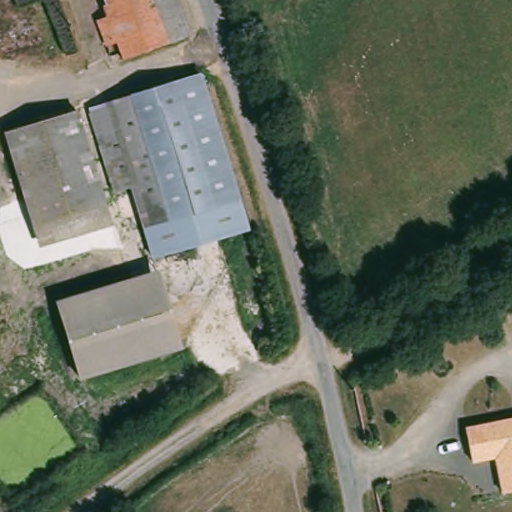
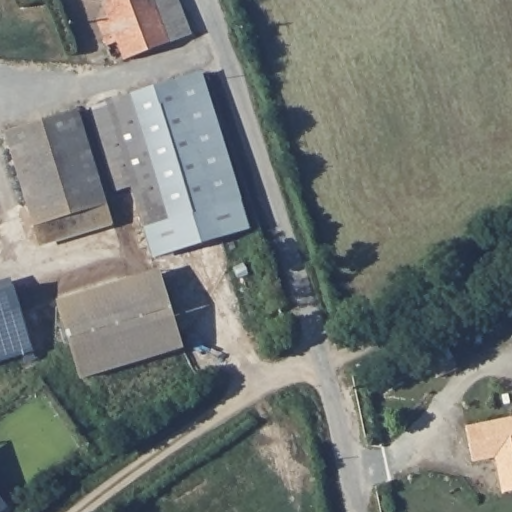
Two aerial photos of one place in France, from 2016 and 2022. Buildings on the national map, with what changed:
unchanged [(196,38),(129,64),(124,47),(112,50),(102,23),(110,20),(106,8),(110,7),(107,0),(182,0),(196,38)]
unchanged [(205,77),(242,201),(202,213),(151,229),(139,187),(182,174),(160,90),(205,77)]
unchanged [(160,90),(182,174),(139,187),(112,104),(160,90)]
unchanged [(112,104),(139,187),(120,192),(95,109),(112,104)]
unchanged [(78,113),(108,221),(39,242),(5,135),(78,113)]
unchanged [(202,213),(242,201),(251,230),(160,259),(151,229),(202,213)]
unchanged [(160,272),(183,347),(81,380),(59,303),(160,272)]
new [(0,291),(14,287),(34,351),(0,362),(0,291)]
unchanged [(512,417),(512,492),(508,493),(500,456),(478,461),(470,428),(512,417)]

